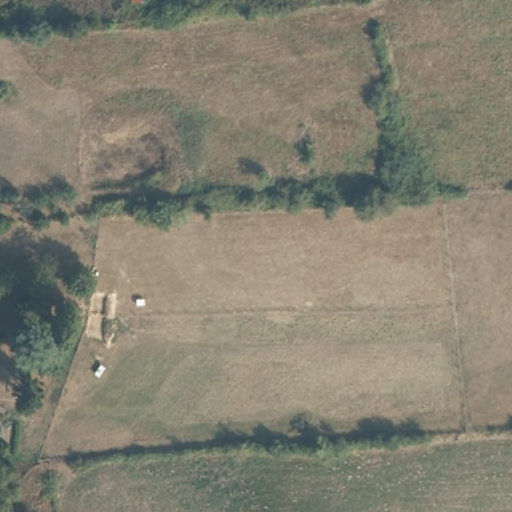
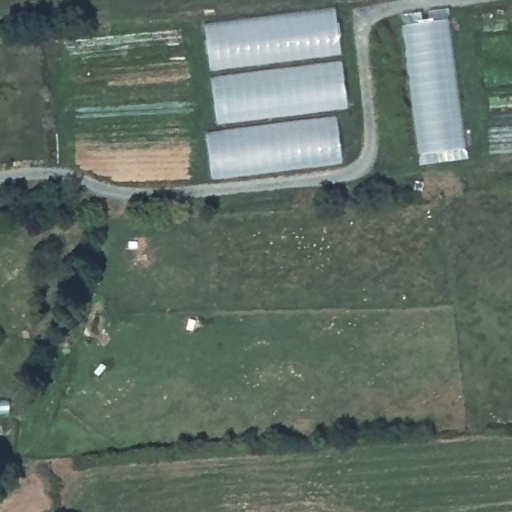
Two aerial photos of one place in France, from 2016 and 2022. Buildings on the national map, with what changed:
new [(204,30),(337,13),(342,51),(209,68),(204,30)]
new [(403,25),(448,19),(465,150),(422,155),(403,25)]
new [(210,79),(343,62),(349,106),(216,124),(210,79)]
new [(206,140),(339,123),(343,160),(211,179),(206,140)]

